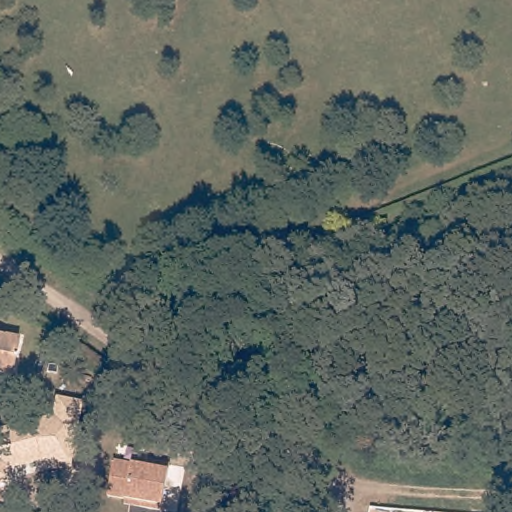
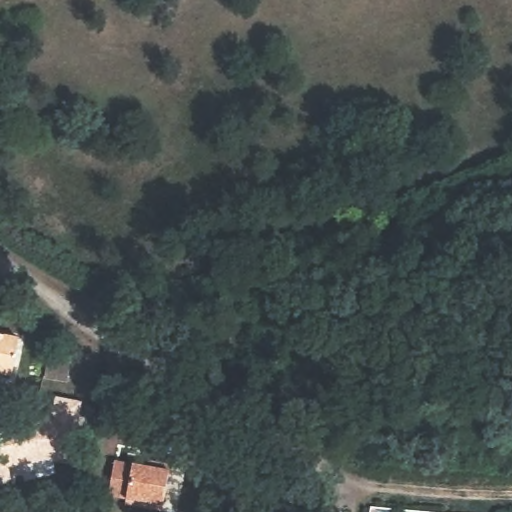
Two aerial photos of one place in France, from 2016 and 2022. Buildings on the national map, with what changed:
unchanged [(21,340),(14,378),(0,375),(0,336),(21,340)]
unchanged [(49,415),(52,398),(81,401),(79,419),(53,418),(61,457),(32,459),(16,462),(16,467),(8,469),(12,482),(0,485),(0,426),(49,415)]
unchanged [(164,512),(162,512),(121,503),(129,459),(172,466),(164,512)]

